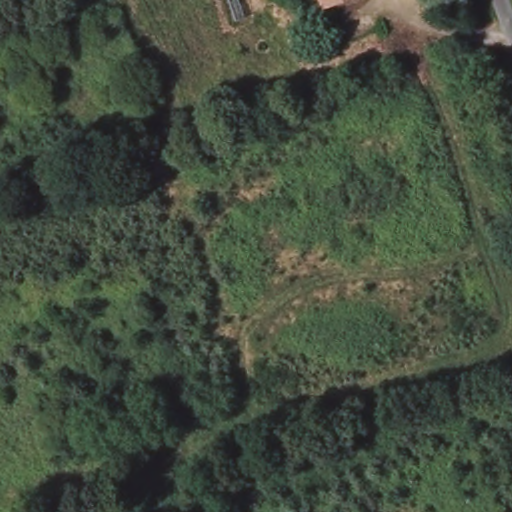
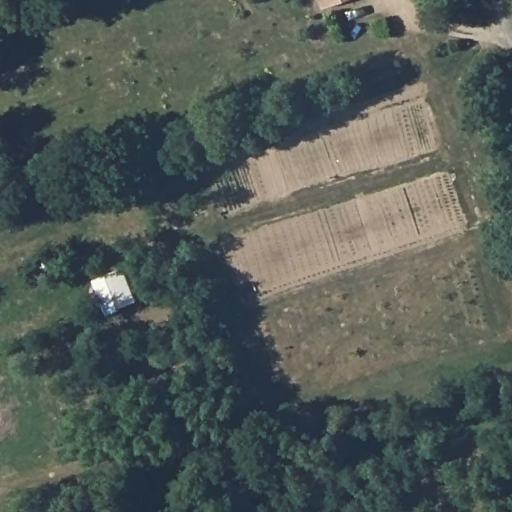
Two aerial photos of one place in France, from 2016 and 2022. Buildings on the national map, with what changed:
unchanged [(325,0),(351,0),(328,9),(325,0)]

